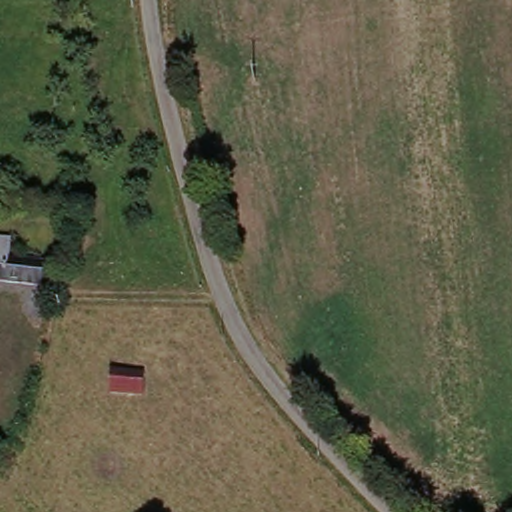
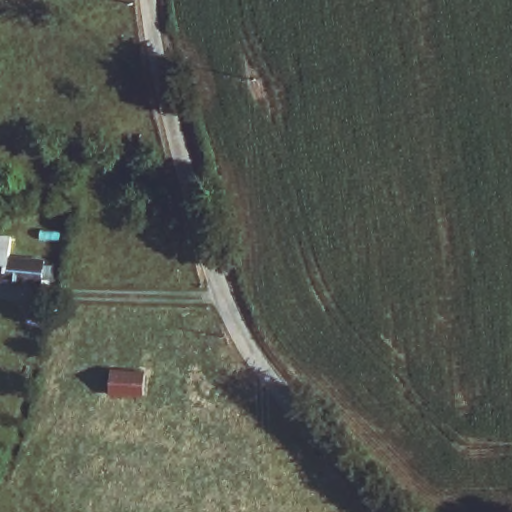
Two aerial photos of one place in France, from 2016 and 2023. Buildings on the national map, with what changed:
unchanged [(14,249),(13,270),(46,274),(45,297),(0,292),(0,248),(14,249)]
unchanged [(145,372),(142,395),(113,392),(115,369),(145,372)]

